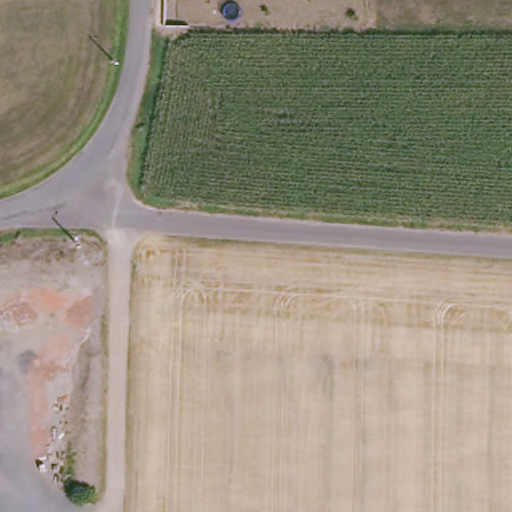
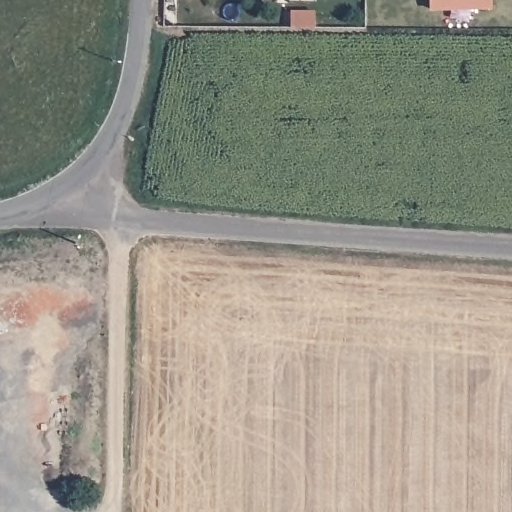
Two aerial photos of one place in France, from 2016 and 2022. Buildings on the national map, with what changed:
new [(430,10),(430,0),(492,0),(492,8),(430,10)]

